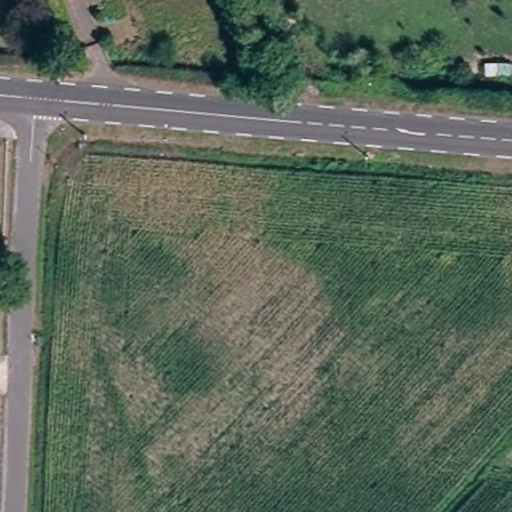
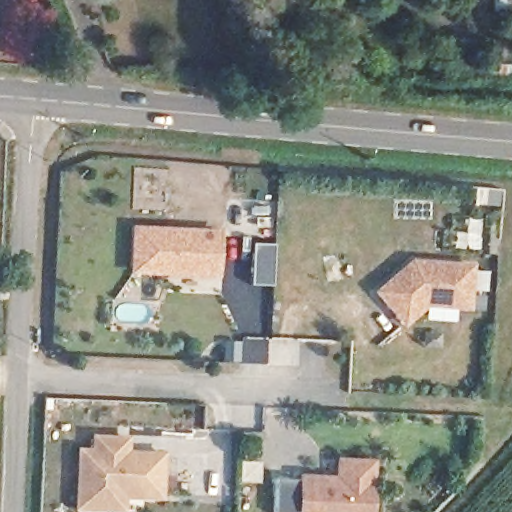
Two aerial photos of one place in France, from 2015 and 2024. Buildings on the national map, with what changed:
new [(137,231),(219,235),(217,275),(135,272),(137,231)]
new [(414,263),(473,267),(471,309),(428,306),(406,325),(378,294),(414,263)]
new [(80,453),(94,453),(95,440),(118,441),(128,441),(127,455),(165,456),(162,501),(124,499),(124,512),(101,512),(77,511),(80,453)]
new [(339,480),(340,462),(374,463),(373,512),(302,512),(302,479),(339,480)]

